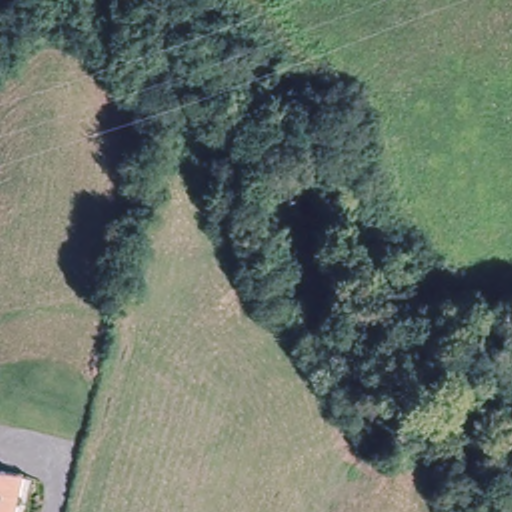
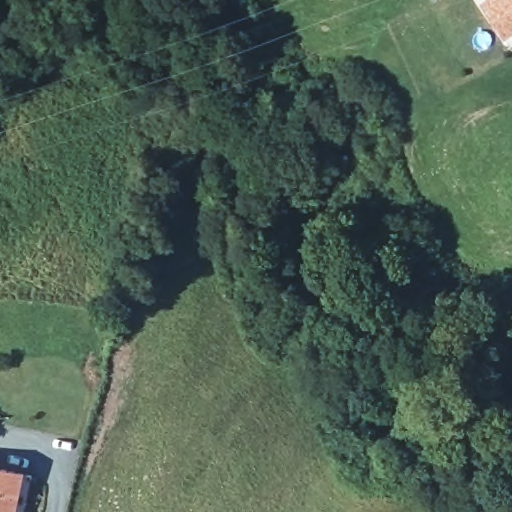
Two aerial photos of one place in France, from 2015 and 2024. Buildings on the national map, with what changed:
new [(481,4),(488,0),(512,0),(512,37),(506,40),(481,4)]
unchanged [(3,471),(0,485),(0,470),(3,471)]
unchanged [(15,512),(0,512),(0,485),(3,471),(23,475),(15,512)]

